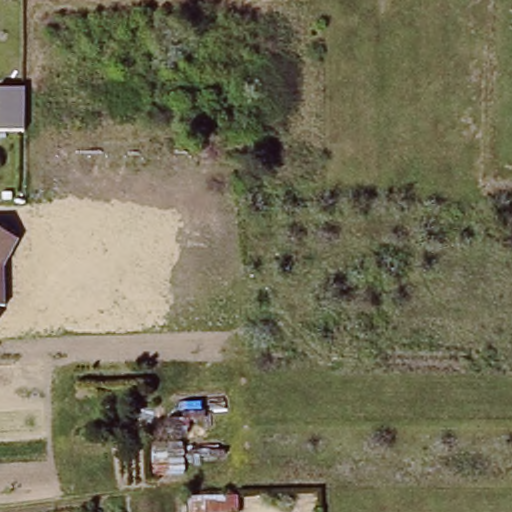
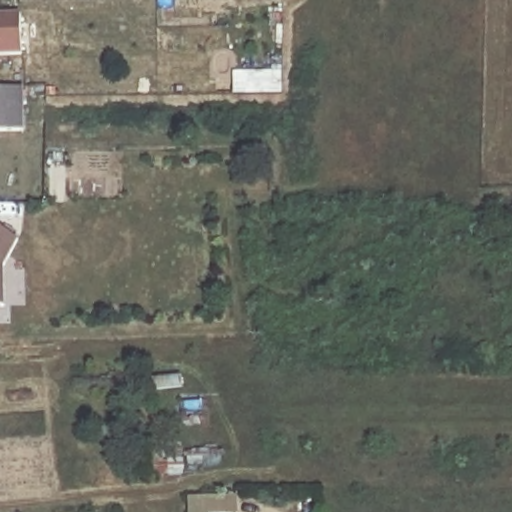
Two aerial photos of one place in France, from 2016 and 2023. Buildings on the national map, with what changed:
new [(0,55),(0,12),(20,11),(23,54),(0,55)]
unchanged [(24,131),(0,131),(0,84),(24,84),(24,131)]
unchanged [(5,266),(7,305),(0,305),(0,229),(20,240),(5,266)]
unchanged [(143,449),(167,447),(167,421),(176,421),(177,413),(203,412),(204,403),(222,405),(223,433),(206,434),(205,441),(181,442),(179,453),(219,451),(219,463),(190,465),(189,471),(177,471),(176,483),(145,485),(143,449)]
unchanged [(239,512),(173,512),(174,500),(239,494),(239,512)]

